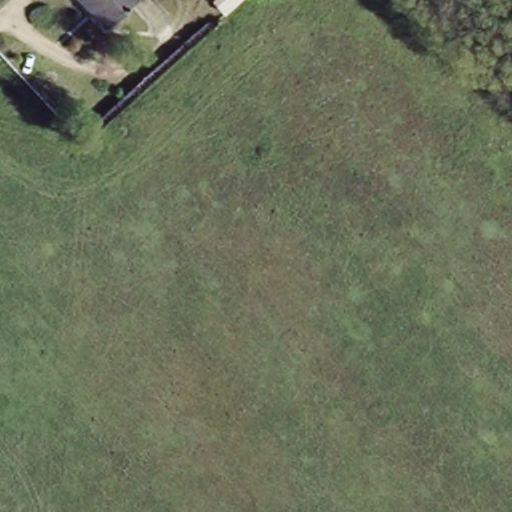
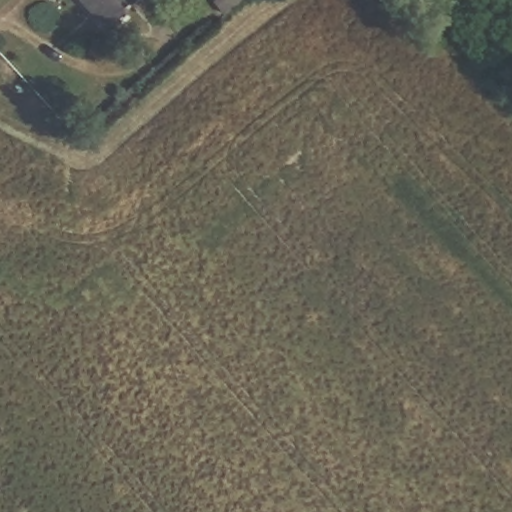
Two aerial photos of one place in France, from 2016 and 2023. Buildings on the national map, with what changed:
unchanged [(91,0),(136,0),(111,22),(91,0)]
unchanged [(227,0),(247,0),(236,11),(227,0)]

